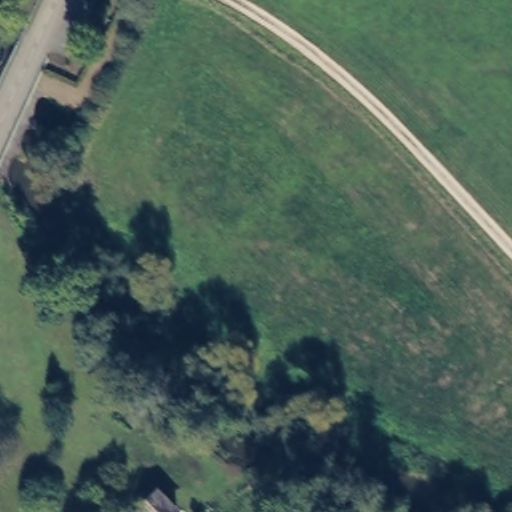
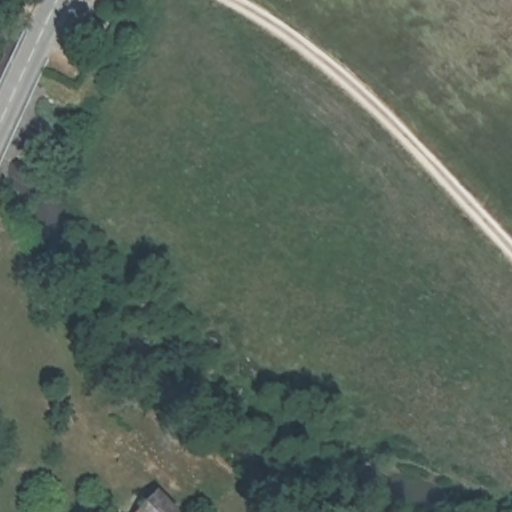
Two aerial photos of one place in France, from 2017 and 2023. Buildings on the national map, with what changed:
[]

